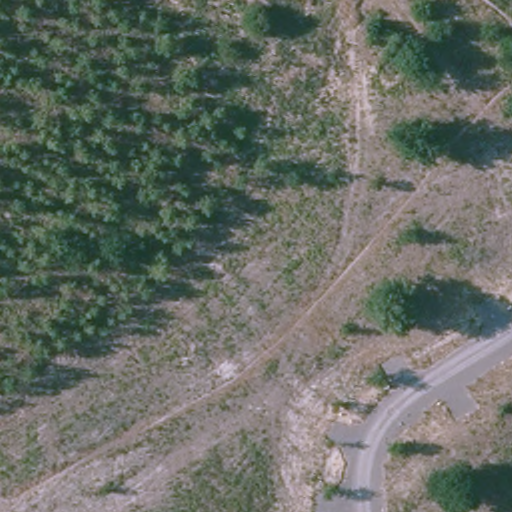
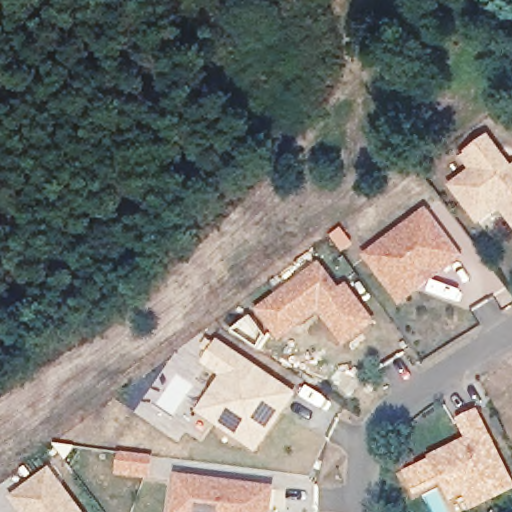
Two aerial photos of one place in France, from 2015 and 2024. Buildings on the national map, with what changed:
unchanged [(452,178),(473,162),(463,149),(486,131),(510,163),(512,162),(512,216),(499,197),(477,213),(470,203),(452,178)]
new [(365,256),(426,210),(464,258),(401,304),(365,256)]
new [(374,321),(346,341),(321,307),(282,336),(261,308),(321,263),(341,290),(348,285),(374,321)]
new [(198,412),(221,378),(202,364),(218,341),(296,394),(257,453),(198,412)]
new [(467,495),(452,502),(430,458),(467,439),(458,420),(479,410),(512,478),(512,492),(475,510),(467,495)]
new [(176,474),(275,488),(272,512),(171,512),(176,474)]
unchanged [(19,505),(55,478),(79,512),(25,512),(19,505)]

